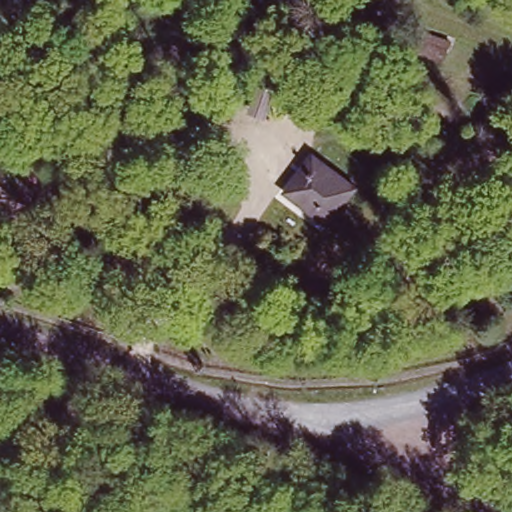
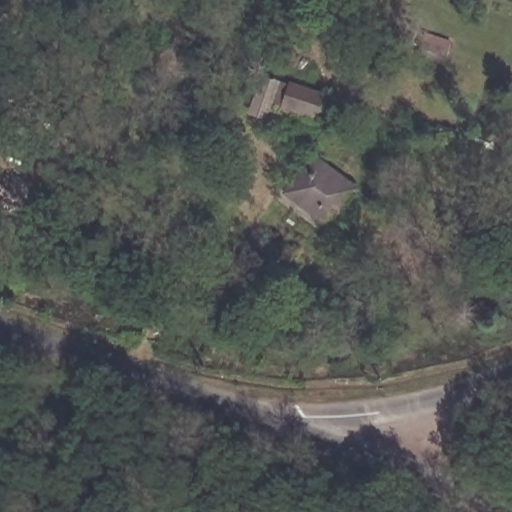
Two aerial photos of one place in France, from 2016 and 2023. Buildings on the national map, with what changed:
unchanged [(447,45),(442,59),(413,48),(419,34),(447,45)]
unchanged [(240,67),(223,82),(215,72),(232,57),(240,67)]
unchanged [(321,90),(312,113),(273,99),(281,76),(321,90)]
unchanged [(0,156),(0,141),(24,149),(19,162),(0,156)]
unchanged [(30,151),(45,156),(37,181),(22,177),(30,151)]
unchanged [(353,186),(328,220),(288,190),(313,156),(353,186)]

